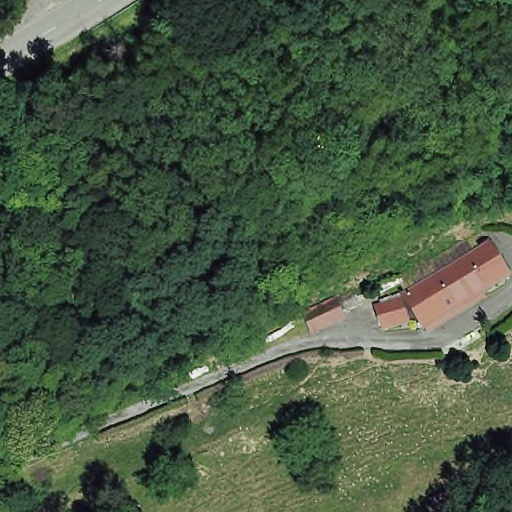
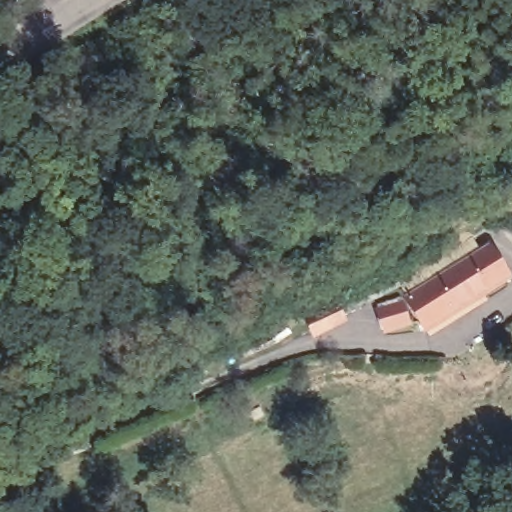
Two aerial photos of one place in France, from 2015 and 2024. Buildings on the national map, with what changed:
unchanged [(427,278),(482,244),(503,279),(448,313),(427,278)]
unchanged [(448,313),(418,331),(397,297),(427,278),(448,313)]
unchanged [(396,301),(402,321),(376,329),(370,309),(396,301)]
unchanged [(342,328),(311,344),(302,327),(351,302),(357,314),(340,324),(342,328)]

